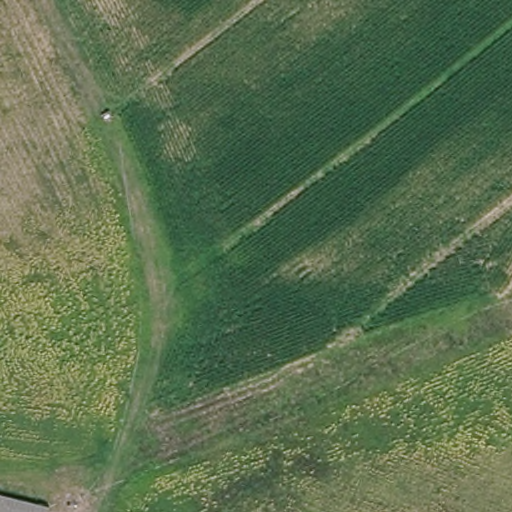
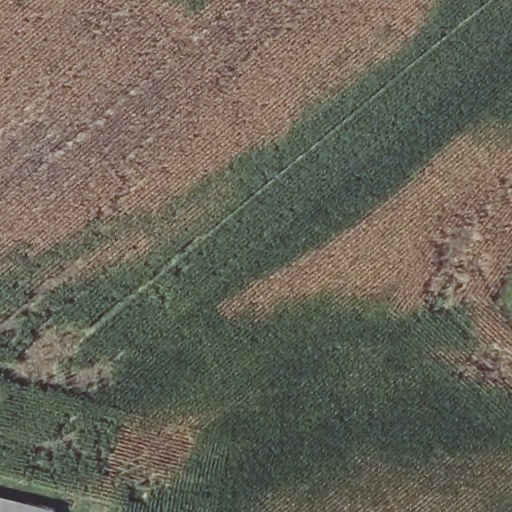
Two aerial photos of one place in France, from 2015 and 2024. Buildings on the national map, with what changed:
unchanged [(0,503),(30,512),(0,512),(0,503)]

